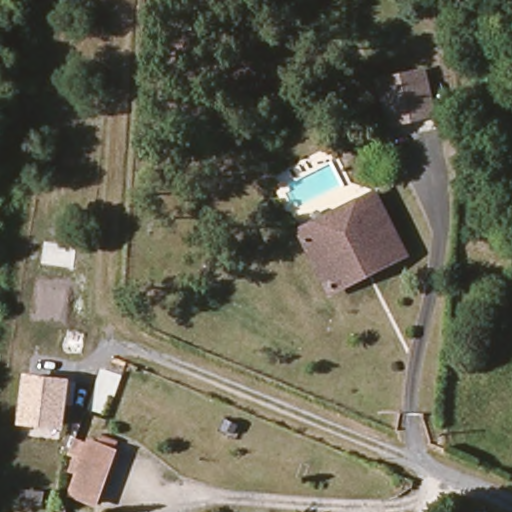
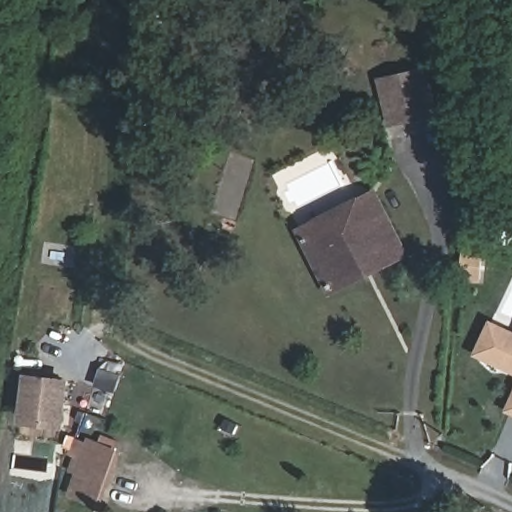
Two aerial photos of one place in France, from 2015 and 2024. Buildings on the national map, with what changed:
unchanged [(428,117),(384,125),(376,80),(416,71),(428,117)]
unchanged [(330,288),(306,238),(301,228),(375,192),(380,202),(406,252),(379,265),(355,276),(330,288)]
new [(473,355),(489,319),(512,330),(512,375),(473,355)]
unchanged [(65,427),(18,423),(24,372),(71,376),(65,427)]
new [(504,410),(512,393),(512,414),(504,410)]
unchanged [(118,449),(96,507),(74,496),(96,441),(118,449)]

